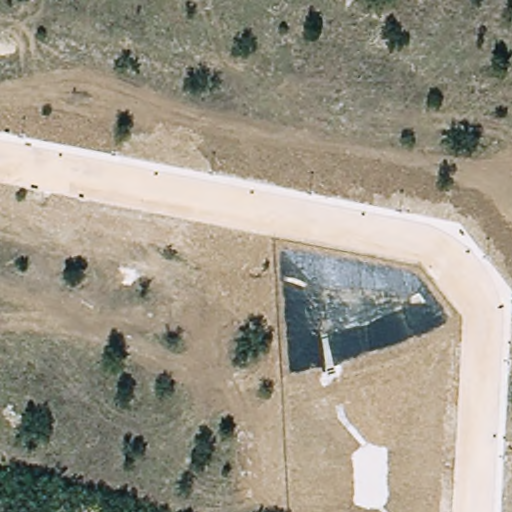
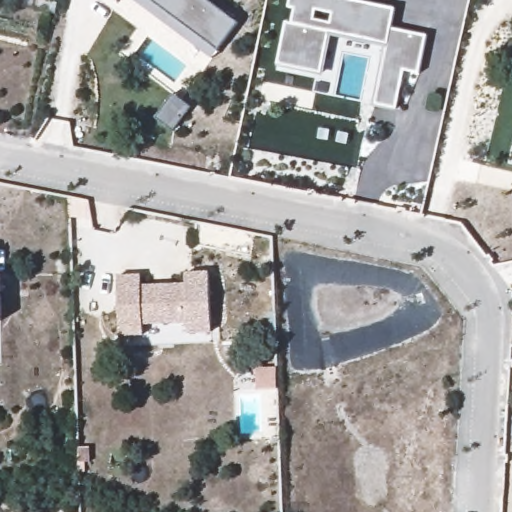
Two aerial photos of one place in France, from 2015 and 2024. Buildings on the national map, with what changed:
new [(215,47),(210,55),(139,0),(154,0),(215,47)]
new [(236,19),(215,47),(154,0),(211,0),(236,19)]
new [(369,103),(374,79),(378,64),(382,42),(326,30),(319,63),(317,72),(298,67),(273,62),(283,19),(288,21),(291,7),(286,5),(287,0),(358,0),(391,7),(387,27),(422,35),(414,73),(399,70),(396,83),(391,108),(369,103)]
new [(137,275),(138,286),(183,284),(182,273),(205,272),(208,332),(185,333),(184,322),(139,324),(140,335),(117,336),(114,276),(137,275)]
new [(7,282),(8,329),(0,329),(0,282),(7,282)]

